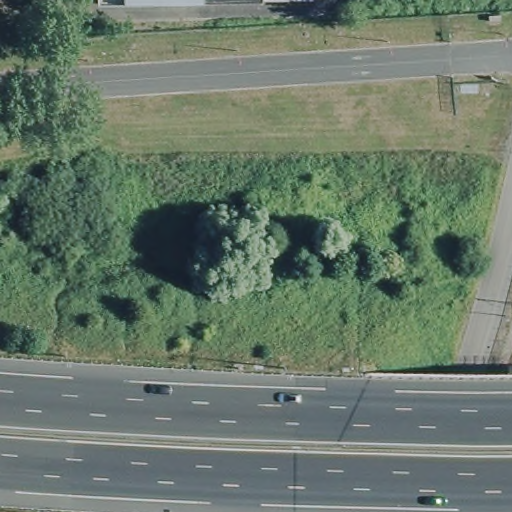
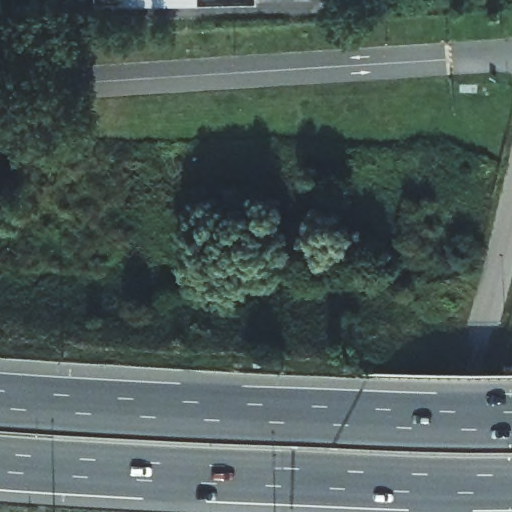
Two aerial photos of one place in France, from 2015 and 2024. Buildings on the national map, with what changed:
unchanged [(318,1),(101,5),(101,0),(318,0),(318,1)]

